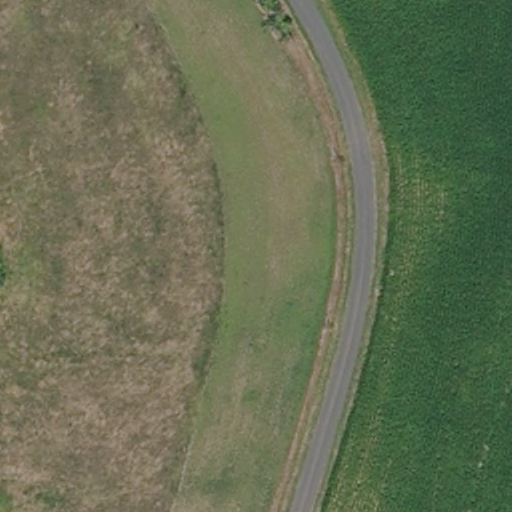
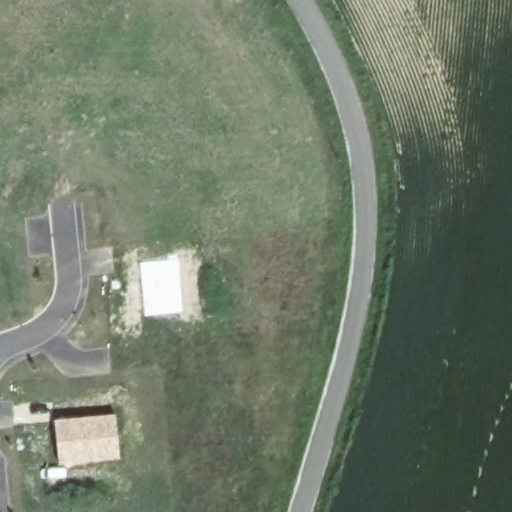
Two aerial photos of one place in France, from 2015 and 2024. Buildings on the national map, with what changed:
new [(116,413),(120,458),(58,466),(54,420),(116,413)]

